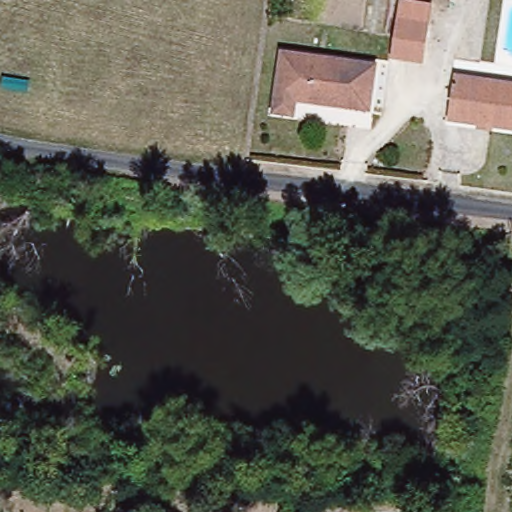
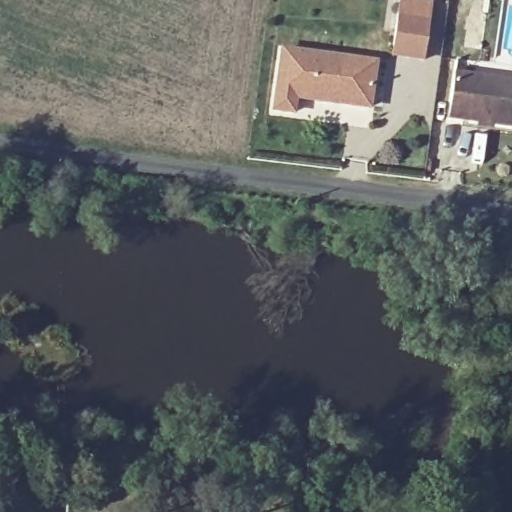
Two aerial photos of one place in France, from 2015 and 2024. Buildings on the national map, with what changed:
unchanged [(392,61),(396,22),(398,7),(430,12),(428,26),(423,64),(392,61)]
unchanged [(377,66),(372,111),(295,100),(293,115),(274,111),(282,50),(377,66)]
unchanged [(512,127),(450,119),(457,71),(512,80),(512,127)]

